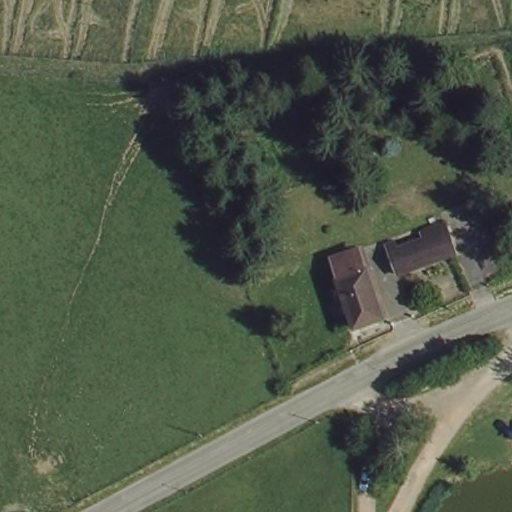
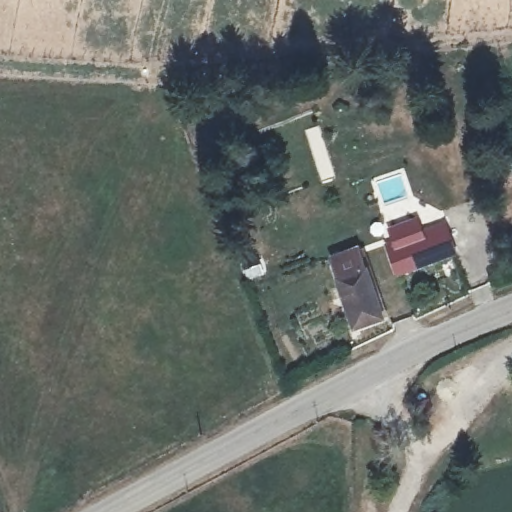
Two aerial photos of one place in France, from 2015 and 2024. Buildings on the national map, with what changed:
unchanged [(399,271),(392,254),(423,242),(422,233),(445,224),(455,252),(399,271)]
unchanged [(352,326),(333,275),(327,258),(355,249),(361,266),(379,316),(352,326)]

